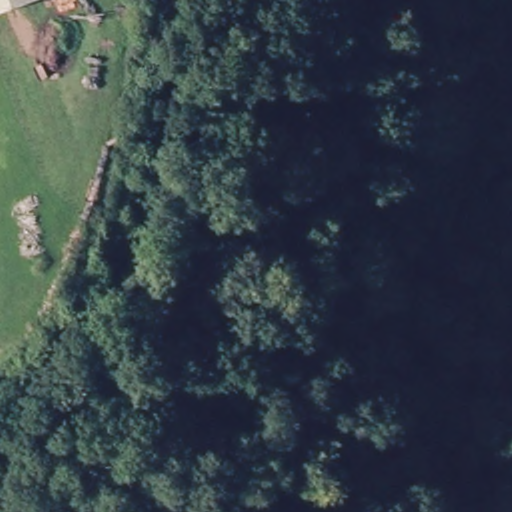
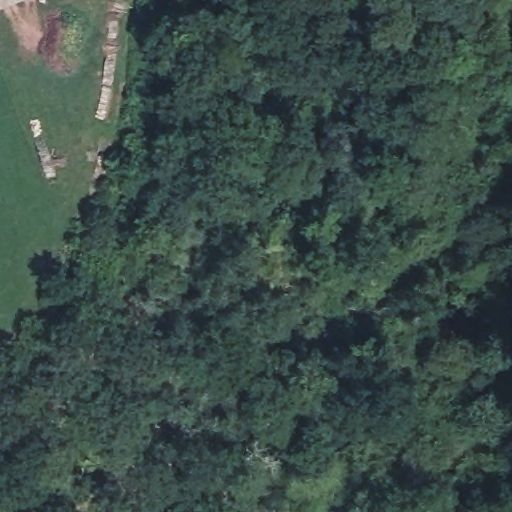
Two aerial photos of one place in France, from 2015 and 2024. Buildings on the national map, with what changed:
unchanged [(0,12),(0,0),(32,0),(0,12)]

